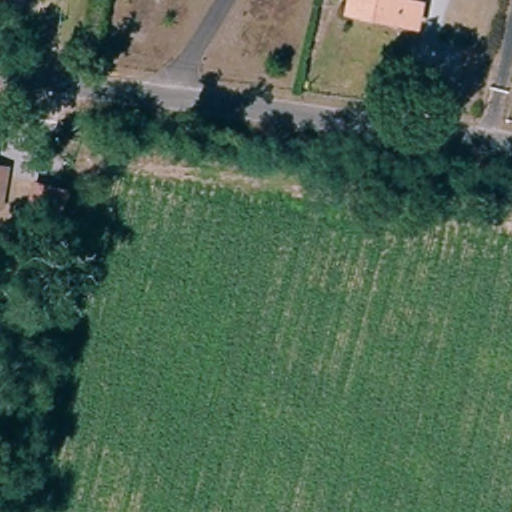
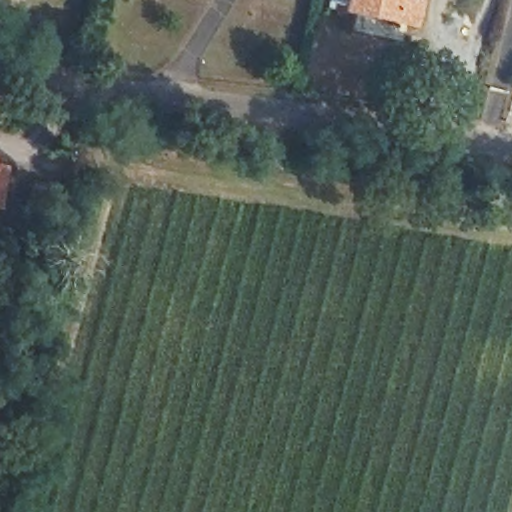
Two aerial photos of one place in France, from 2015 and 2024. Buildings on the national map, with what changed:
unchanged [(408,5),(404,25),(340,10),(342,0),(389,0),(408,5)]
unchanged [(6,209),(0,208),(0,169),(11,172),(6,209)]
unchanged [(44,211),(26,209),(31,182),(49,184),(44,211)]
unchanged [(15,317),(19,306),(25,308),(21,319),(15,317)]

